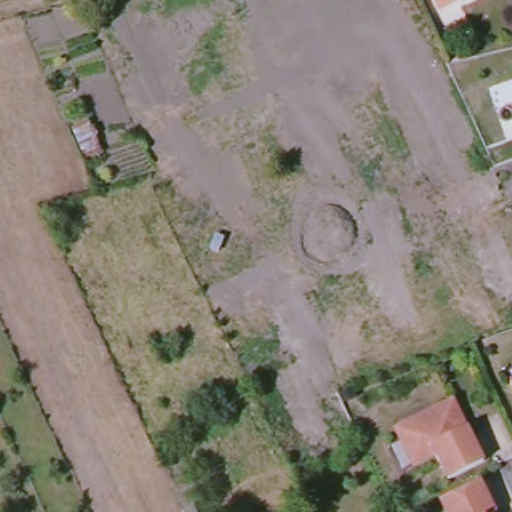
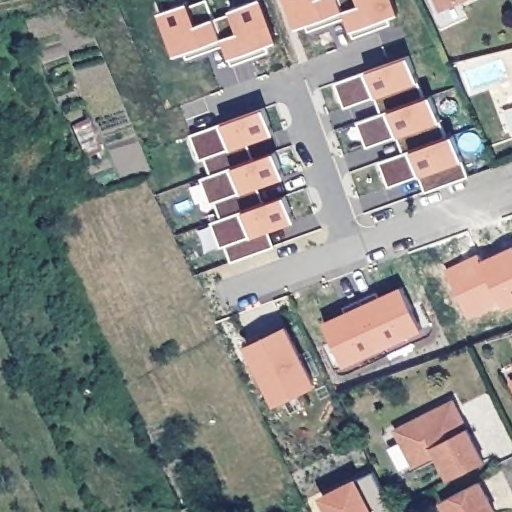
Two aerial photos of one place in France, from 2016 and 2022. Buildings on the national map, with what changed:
new [(196,0),(209,0),(214,17),(232,8),(254,0),(262,0),(276,40),(266,43),(269,51),(231,64),(229,57),(224,45),(188,58),(185,48),(174,54),(160,11),(189,1),(196,0)]
new [(387,15),(390,24),(354,37),(350,30),(345,16),(309,30),(306,23),(295,28),(286,0),(393,0),(397,11),(387,15)]
demolished [(424,21),(430,35),(414,41),(407,28),(400,31),(385,0),(407,0),(418,23),(424,21)]
unchanged [(428,0),(458,0),(432,10),(428,0)]
demolished [(204,11),(211,26),(180,43),(172,24),(204,11)]
new [(417,81),(424,98),(432,96),(440,121),(445,137),(454,134),(462,160),(468,177),(425,192),(420,176),(389,187),(380,161),(402,153),(397,136),(365,146),(357,121),(382,113),(377,96),(344,108),(335,82),(366,71),(409,55),(417,81)]
new [(274,134),(248,143),(255,160),(275,151),(284,178),(259,186),(266,203),(286,196),(295,222),(269,230),(275,246),(231,261),(225,245),(221,247),(212,222),(222,219),(215,202),(210,204),(200,178),(210,175),(204,159),(200,161),(191,135),(264,108),(274,134)]
unchanged [(93,116),(107,152),(83,161),(70,127),(93,116)]
new [(287,325),(315,384),(274,405),(245,346),(287,325)]
unchanged [(447,480),(435,455),(412,466),(400,441),(395,430),(412,421),(452,401),(462,420),(466,429),(482,463),(447,480)]
unchanged [(439,502),(479,483),(493,512),(444,512),(439,502)]

